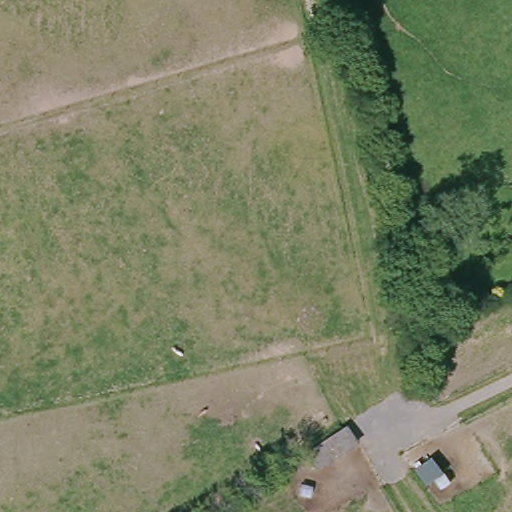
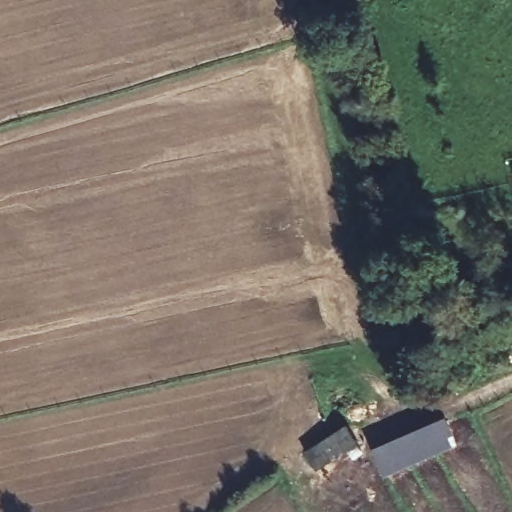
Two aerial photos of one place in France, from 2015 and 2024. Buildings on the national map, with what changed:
new [(372,448),(446,416),(459,444),(385,476),(372,448)]
unchanged [(321,473),(311,452),(347,425),(360,445),(321,473)]

